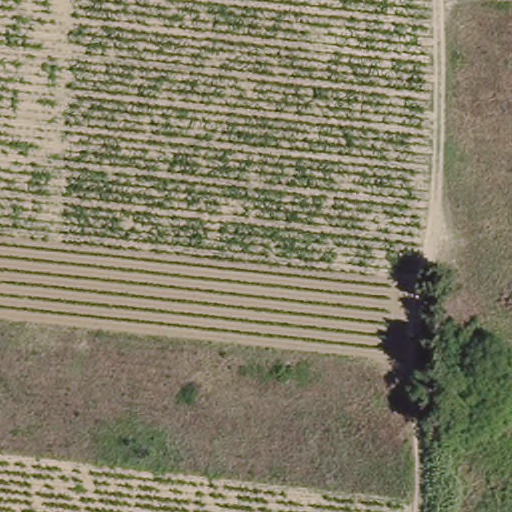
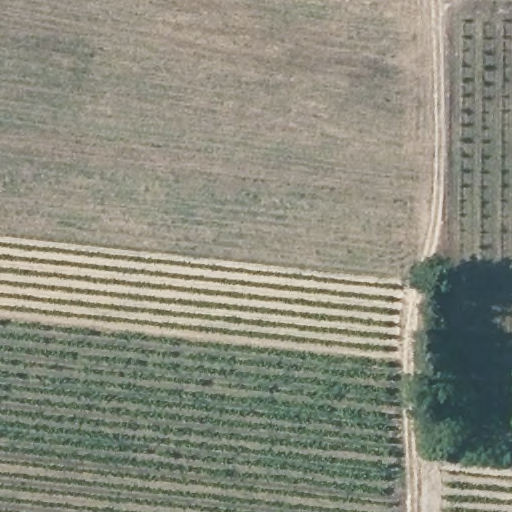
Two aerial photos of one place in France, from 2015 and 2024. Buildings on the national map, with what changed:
unchanged [(453,438),(429,436),(429,425),(430,414),(455,416),(453,438)]

